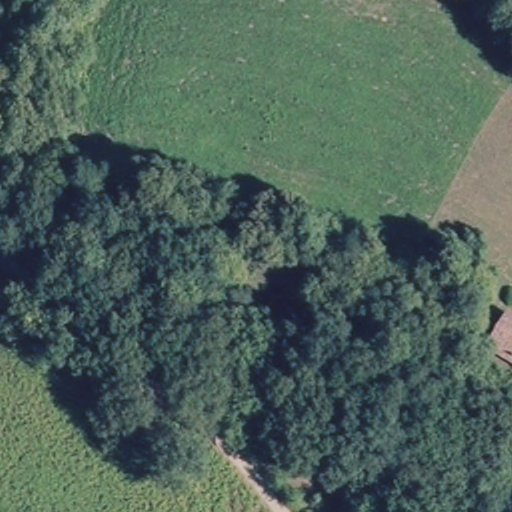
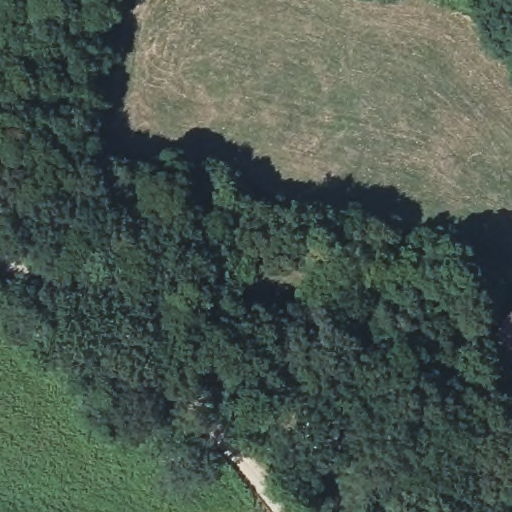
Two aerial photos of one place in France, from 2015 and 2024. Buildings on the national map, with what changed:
unchanged [(507,312),(512,314),(512,356),(490,342),(507,312)]

